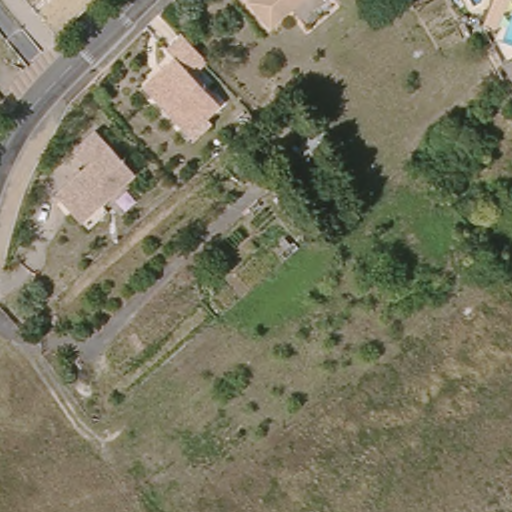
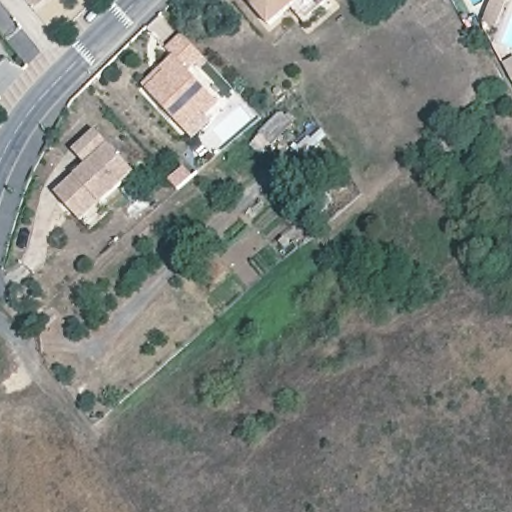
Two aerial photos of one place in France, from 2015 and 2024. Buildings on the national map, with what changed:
unchanged [(294,1),(273,16),(260,0),(325,0),(305,15),(294,1)]
unchanged [(501,0),(512,0),(512,5),(501,1),(501,0)]
unchanged [(189,140),(179,130),(140,84),(172,52),(164,45),(182,27),(205,53),(188,68),(219,105),(202,119),(207,124),(189,140)]
unchanged [(97,131),(136,177),(100,207),(75,228),(48,196),(83,168),(71,154),(97,131)]

